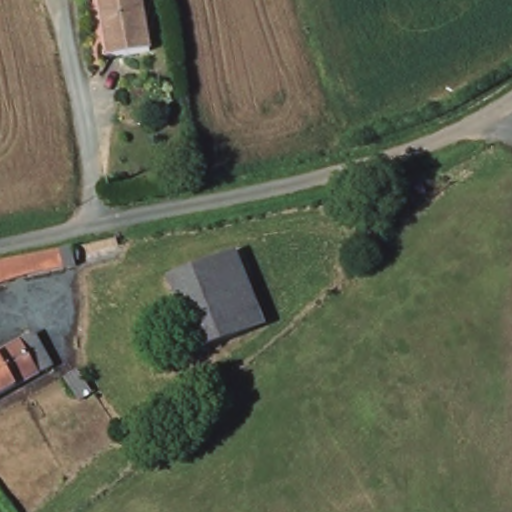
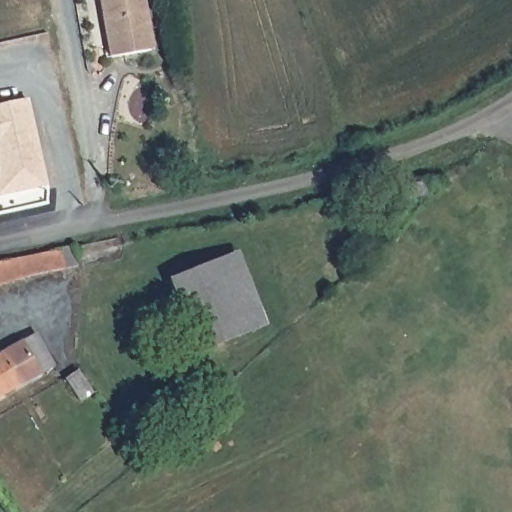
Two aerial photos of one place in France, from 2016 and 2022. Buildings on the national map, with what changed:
unchanged [(154,52),(111,57),(100,0),(144,0),(154,52)]
new [(44,186),(0,195),(0,105),(24,99),(44,186)]
unchanged [(424,169),(429,185),(407,190),(402,174),(424,169)]
unchanged [(0,285),(0,260),(75,244),(80,265),(0,285)]
unchanged [(229,247),(265,331),(209,355),(172,271),(229,247)]
unchanged [(39,337),(47,351),(51,357),(56,366),(42,375),(32,381),(0,401),(0,360),(23,346),(39,337)]
unchanged [(74,364),(89,389),(74,398),(59,373),(74,364)]

